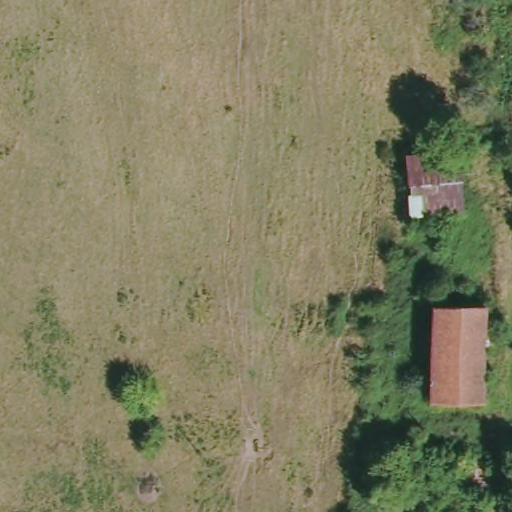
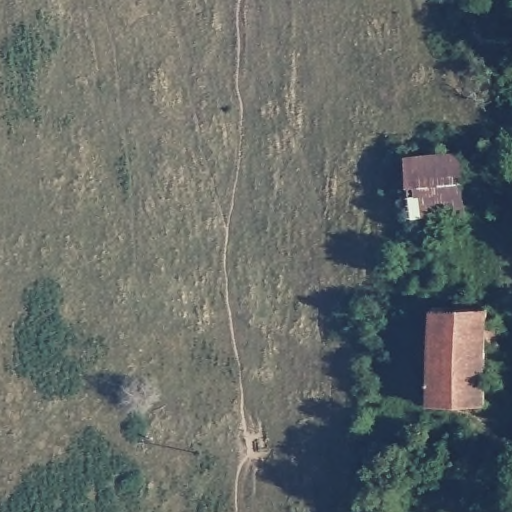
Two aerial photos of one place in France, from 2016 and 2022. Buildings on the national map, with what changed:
unchanged [(465,217),(412,215),(415,154),(466,155),(465,217)]
unchanged [(492,306),(493,326),(506,329),(505,350),(491,349),(488,401),(427,397),(433,302),(492,306)]

